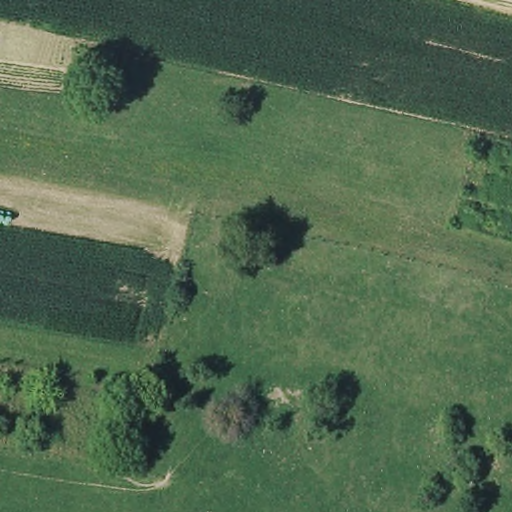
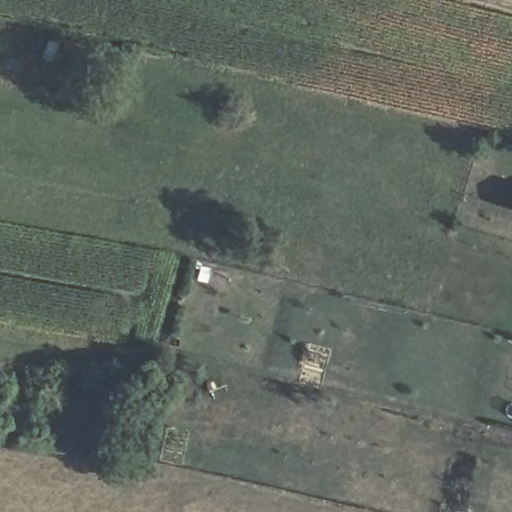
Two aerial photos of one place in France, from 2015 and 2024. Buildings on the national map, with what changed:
[]

